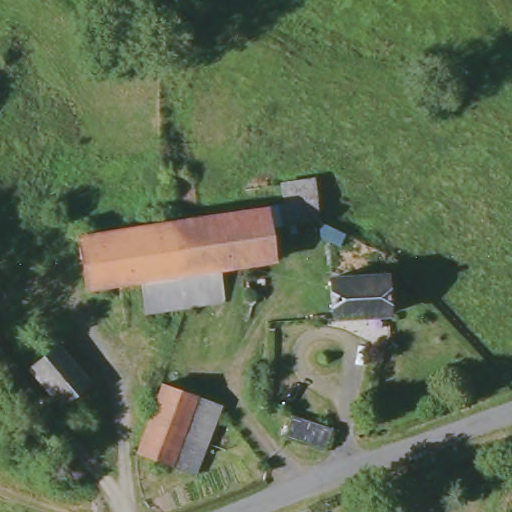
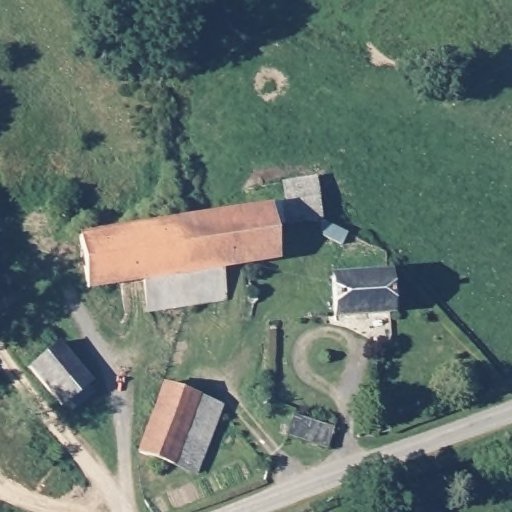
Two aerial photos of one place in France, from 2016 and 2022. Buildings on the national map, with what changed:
unchanged [(280,197),(276,175),(309,169),(318,216),(342,224),(341,232),(320,227),(319,219),(269,227),(274,259),(222,267),(226,298),(186,303),(172,215),(266,199),(280,197)]
unchanged [(146,309),(141,277),(87,287),(78,231),(172,215),(186,303),(146,309)]
unchanged [(381,280),(383,319),(329,322),(326,282),(381,280)]
unchanged [(25,366),(53,343),(85,384),(58,407),(25,366)]
unchanged [(216,402),(193,470),(137,453),(158,383),(216,402)]
unchanged [(336,424),(329,447),(291,432),(297,410),(336,424)]

